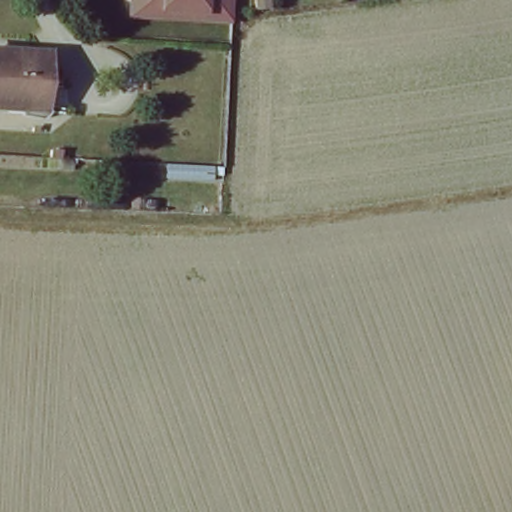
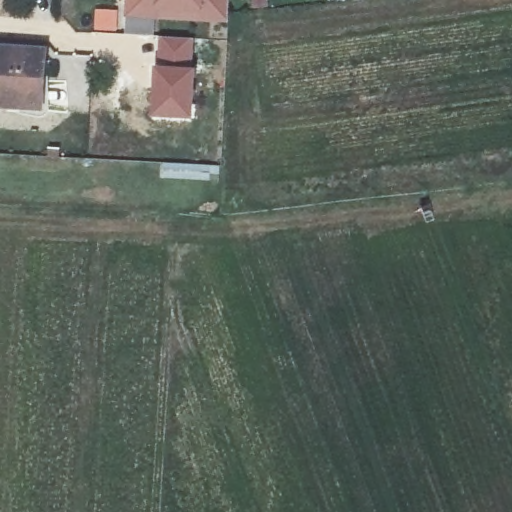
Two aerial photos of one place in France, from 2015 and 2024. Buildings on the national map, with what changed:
unchanged [(229,19),(129,13),(129,5),(129,0),(230,0),(230,11),(230,14),(229,19)]
new [(95,8),(118,9),(118,31),(94,30),(95,8)]
new [(157,36),(194,37),(193,67),(155,65),(157,36)]
unchanged [(42,50),(39,104),(0,102),(0,48),(42,50)]
new [(155,65),(193,67),(193,120),(152,118),(155,65)]
new [(161,162),(220,165),(219,177),(160,177),(161,162)]

